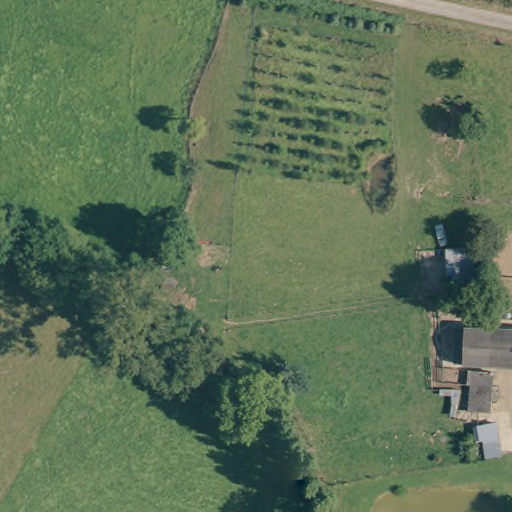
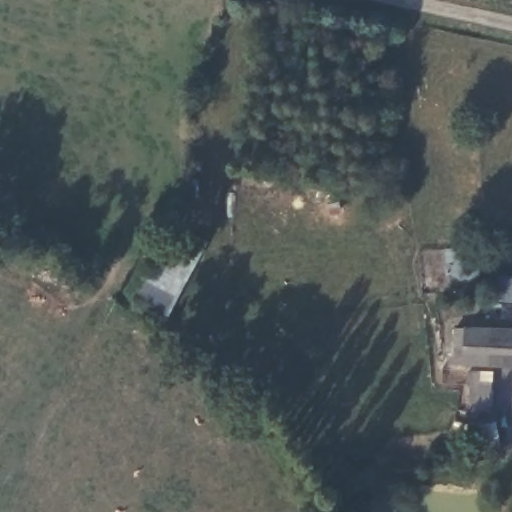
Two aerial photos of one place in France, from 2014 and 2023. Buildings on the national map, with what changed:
new [(165,246),(196,262),(169,314),(137,298),(165,246)]
new [(511,303),(512,287),(512,304),(511,303)]
unchanged [(457,365),(460,326),(508,331),(506,369),(457,365)]
unchanged [(506,369),(508,331),(512,331),(512,370),(506,369)]
unchanged [(447,383),(448,371),(456,372),(469,373),(465,402),(453,401),(455,383),(447,383)]

